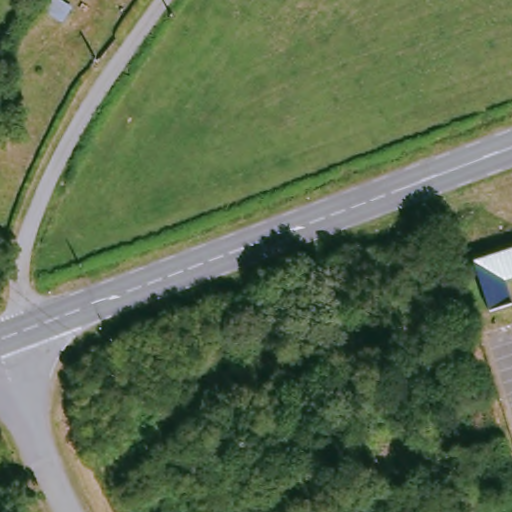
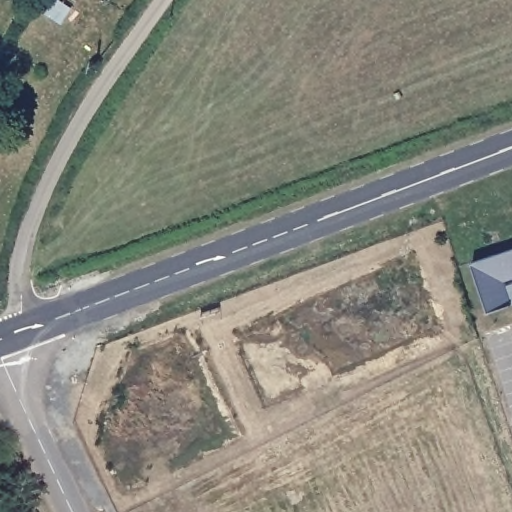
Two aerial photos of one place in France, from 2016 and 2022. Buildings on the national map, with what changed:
unchanged [(512,293),(512,305),(492,310),(477,261),(512,249),(512,280),(508,281),(512,293)]

